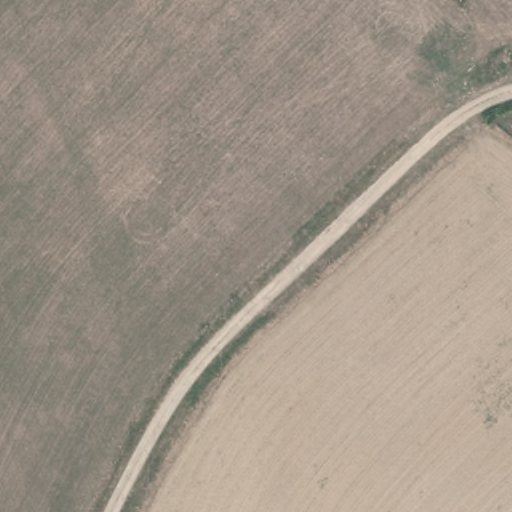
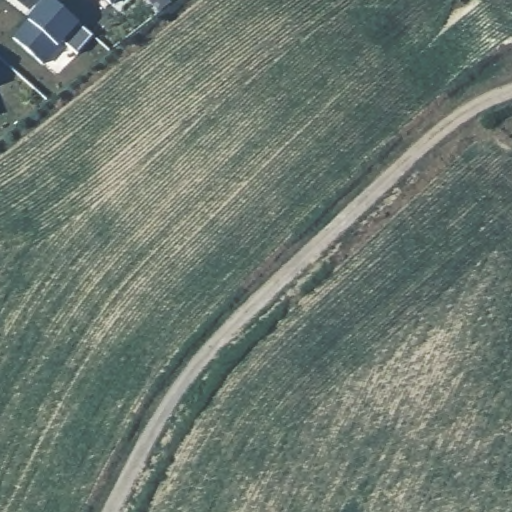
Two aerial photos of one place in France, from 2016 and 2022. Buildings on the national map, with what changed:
new [(28,16),(42,0),(52,0),(94,36),(79,55),(65,41),(43,65),(13,40),(32,19),(28,16)]
new [(107,0),(116,0),(112,5),(107,0)]

